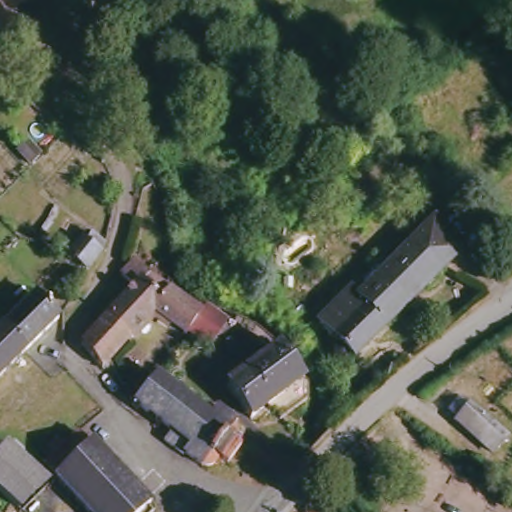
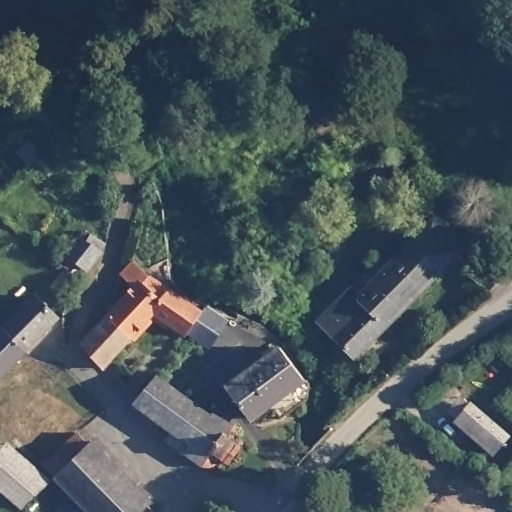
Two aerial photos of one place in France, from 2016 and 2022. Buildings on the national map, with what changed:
unchanged [(355,278),(360,282),(432,209),(464,240),(443,261),(447,265),(356,350),(347,350),(342,345),(344,335),(322,313),(355,278)]
unchanged [(71,226),(76,229),(83,220),(97,232),(76,258),(55,244),(71,226)]
unchanged [(177,280),(190,294),(205,305),(183,332),(155,309),(133,329),(107,305),(111,301),(134,281),(120,266),(132,254),(148,271),(145,275),(160,291),(175,276),(177,280)]
unchanged [(35,290),(58,312),(29,344),(5,320),(35,290)]
unchanged [(133,329),(108,353),(101,359),(77,332),(107,305),(133,329)]
unchanged [(0,377),(0,314),(5,320),(29,344),(0,377)]
unchanged [(310,385),(288,402),(283,397),(265,411),(228,367),(277,331),(308,365),(310,385)]
unchanged [(210,406),(215,400),(238,419),(232,436),(241,444),(229,460),(215,450),(203,463),(187,449),(183,454),(162,437),(167,427),(133,397),(158,364),(210,406)]
unchanged [(488,414),(475,430),(452,412),(465,395),(488,414)]
unchanged [(133,512),(96,512),(54,469),(42,458),(75,422),(86,433),(90,429),(150,496),(133,512)]
unchanged [(469,438),(479,446),(473,453),(463,445),(469,438)]
unchanged [(50,473),(23,503),(0,481),(0,463),(17,444),(50,473)]

